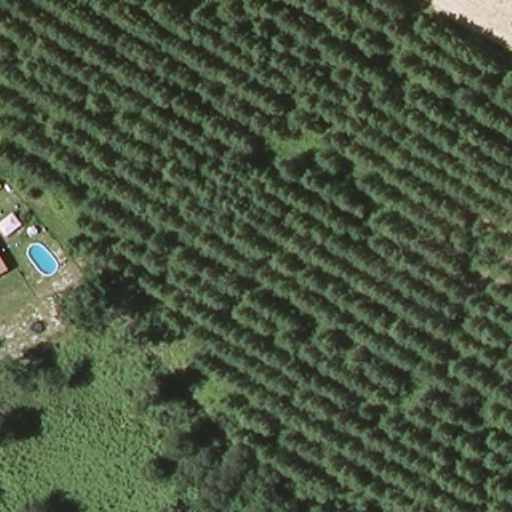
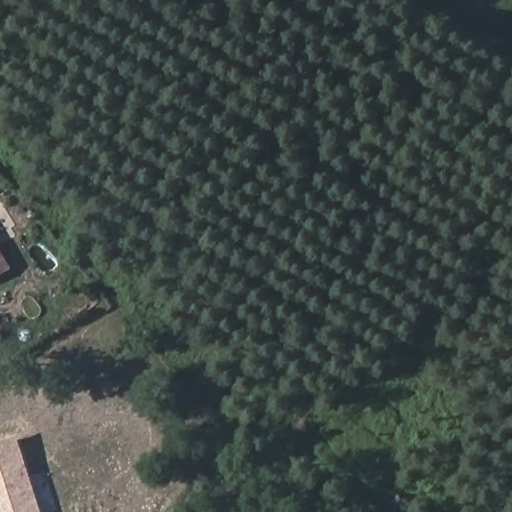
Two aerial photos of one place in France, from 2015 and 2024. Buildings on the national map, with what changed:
unchanged [(0,275),(0,251),(10,269),(0,275)]
new [(18,442),(41,512),(0,512),(0,448),(18,442)]

